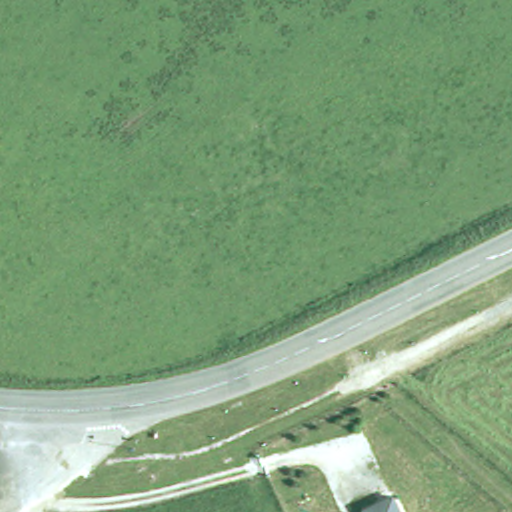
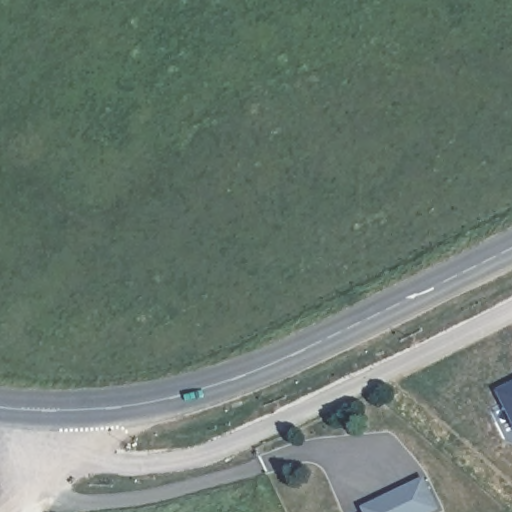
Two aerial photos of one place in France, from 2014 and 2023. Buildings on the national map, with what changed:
new [(512,384),(512,417),(498,390),(512,384)]
new [(362,510),(361,508),(427,477),(443,509),(438,512),(398,512),(391,497),(362,510)]
unchanged [(391,497),(398,512),(363,512),(362,510),(391,497)]

